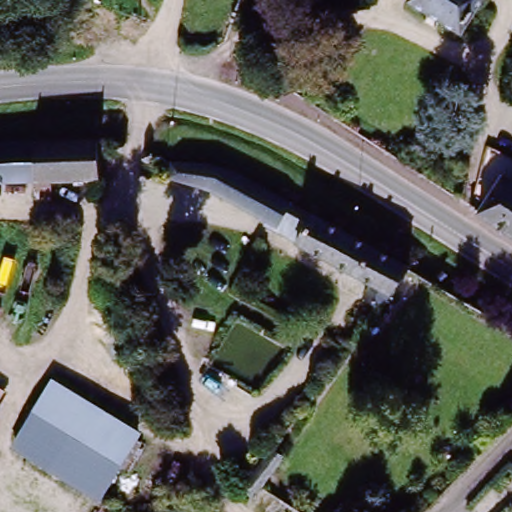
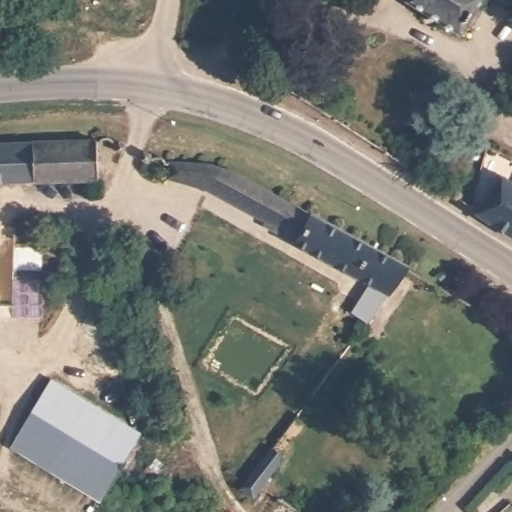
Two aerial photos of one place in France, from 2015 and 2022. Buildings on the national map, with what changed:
unchanged [(463,32),(414,2),(415,0),(484,0),(463,32)]
unchanged [(104,139),(105,173),(48,176),(46,142),(104,139)]
unchanged [(46,142),(48,176),(0,179),(0,145),(46,142)]
unchanged [(204,160),(234,168),(221,191),(173,179),(173,163),(204,160)]
unchanged [(221,191),(234,168),(298,204),(284,226),(221,191)]
unchanged [(498,178),(512,187),(512,238),(475,214),(498,178)]
unchanged [(368,297),(376,283),(282,230),(284,226),(298,204),(341,230),(411,270),(393,293),(382,308),(368,297)]
unchanged [(9,449),(50,377),(143,433),(106,505),(9,449)]

